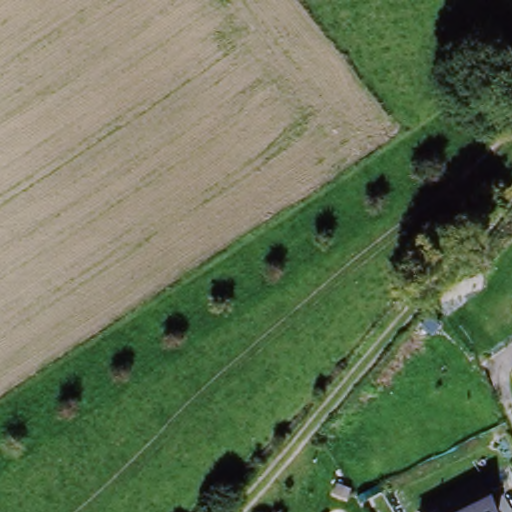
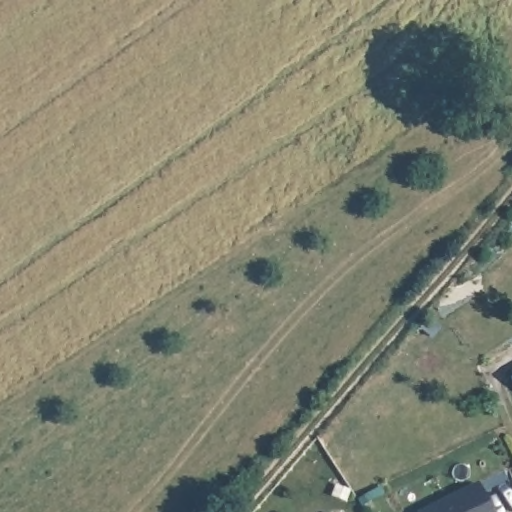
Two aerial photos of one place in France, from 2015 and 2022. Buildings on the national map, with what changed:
unchanged [(479,479),(493,512),(415,512),(414,510),(479,479)]

